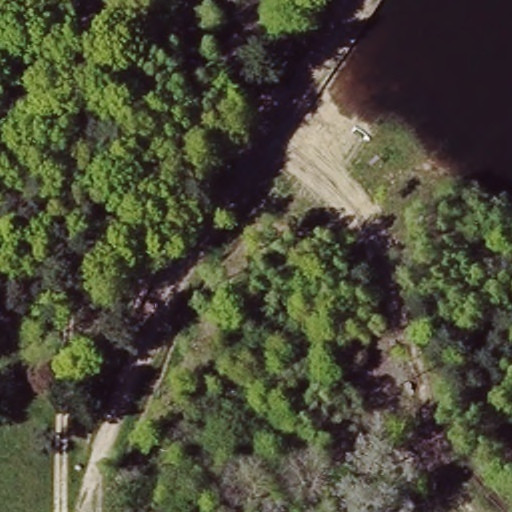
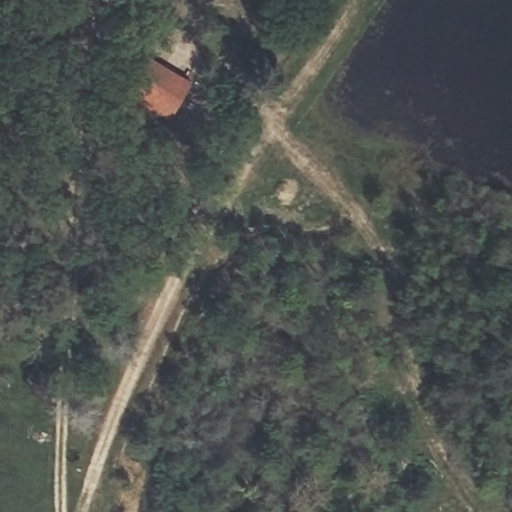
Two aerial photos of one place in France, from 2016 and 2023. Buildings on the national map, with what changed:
new [(149,55),(194,78),(175,114),(131,90),(149,55)]

